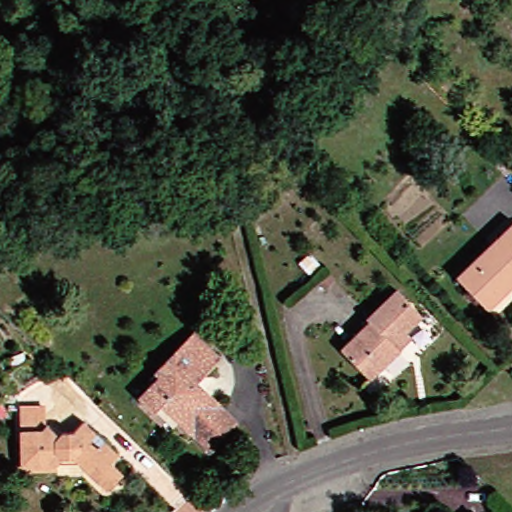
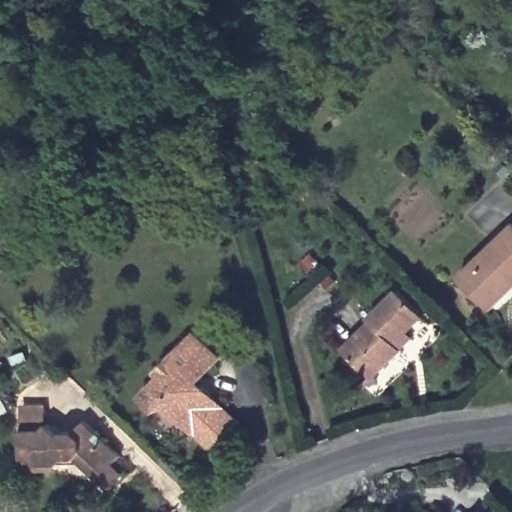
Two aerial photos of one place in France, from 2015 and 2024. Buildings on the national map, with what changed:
unchanged [(451,280),(509,225),(512,228),(512,288),(483,315),(477,309),(451,280)]
unchanged [(398,350),(365,383),(336,355),(365,327),(361,324),(391,294),(416,320),(400,335),(407,342),(398,350)]
unchanged [(214,358),(191,381),(231,423),(202,452),(156,405),(148,413),(133,399),(155,378),(149,372),(188,333),(214,358)]
unchanged [(41,405),(41,427),(20,427),(21,405),(41,405)]
unchanged [(101,496),(90,485),(69,465),(56,465),(53,470),(21,470),(21,430),(42,430),(51,437),(70,437),(80,427),(115,460),(106,469),(116,480),(101,496)]

